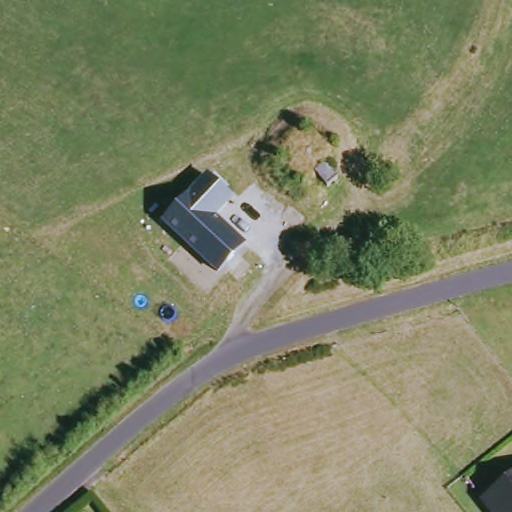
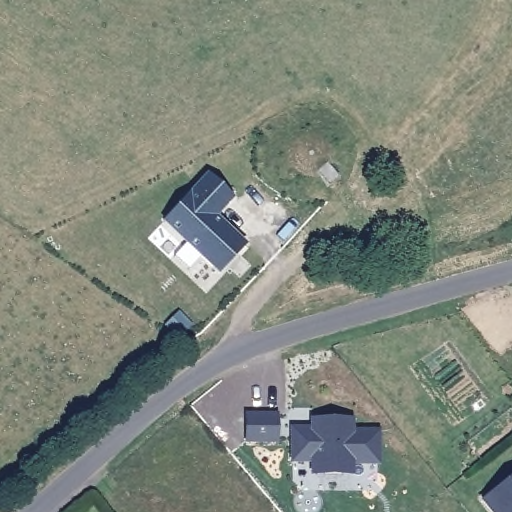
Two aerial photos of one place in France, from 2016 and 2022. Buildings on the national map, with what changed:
unchanged [(247,244),(217,276),(162,222),(205,175),(233,200),(217,217),(247,244)]
new [(308,464),(289,464),(288,427),(310,427),(309,418),(353,418),(355,429),(379,429),(380,464),(355,463),(355,473),(310,475),(308,464)]
unchanged [(482,502),(512,478),(512,512),(490,512),(482,502)]

